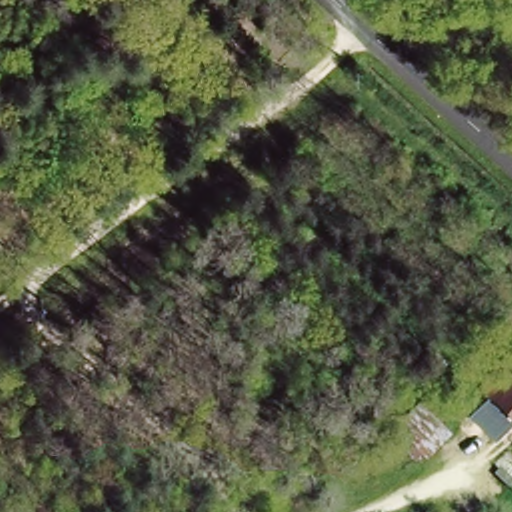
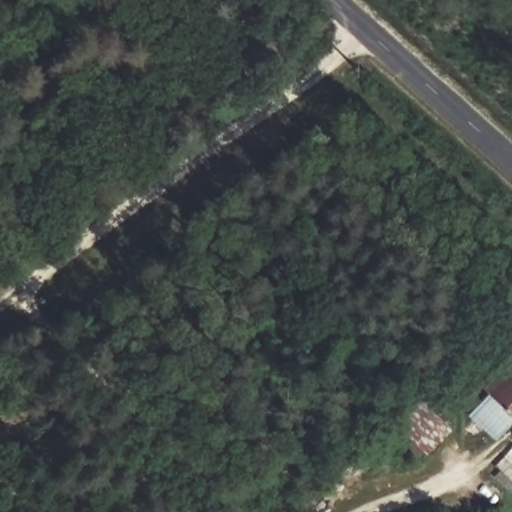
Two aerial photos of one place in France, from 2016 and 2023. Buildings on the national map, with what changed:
unchanged [(512,345),(512,406),(479,380),(512,345)]
unchanged [(424,453),(392,418),(423,392),(454,423),(424,453)]

